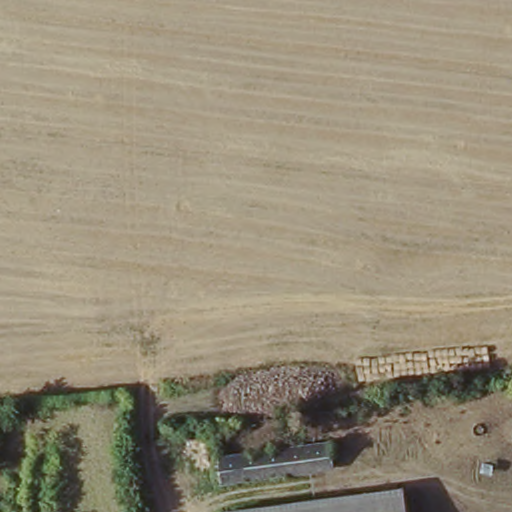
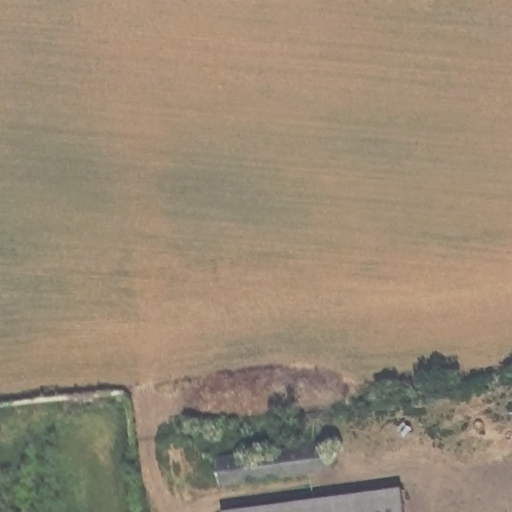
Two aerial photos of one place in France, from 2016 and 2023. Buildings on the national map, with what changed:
unchanged [(333,476),(220,492),(215,464),(330,448),(333,476)]
unchanged [(402,512),(259,512),(400,493),(402,512)]

